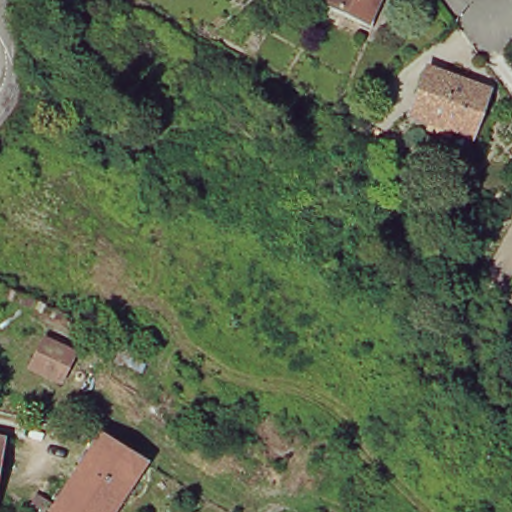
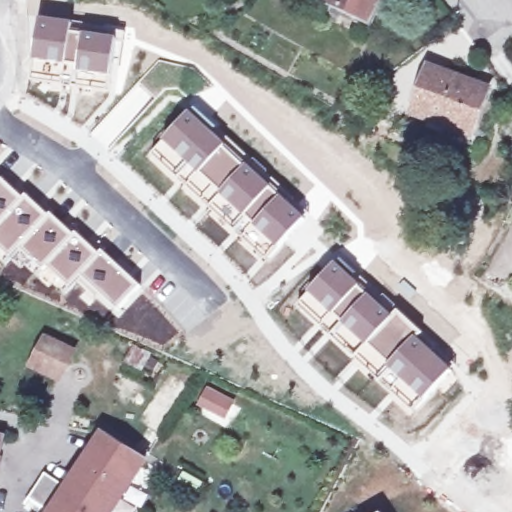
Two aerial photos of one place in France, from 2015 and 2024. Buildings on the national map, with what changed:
unchanged [(339,0),(376,0),(369,15),(339,0)]
new [(39,17),(85,22),(84,30),(116,34),(110,78),(75,73),(76,68),(33,63),(39,17)]
unchanged [(487,95),(473,132),(417,109),(434,67),(459,76),(456,83),(487,95)]
new [(192,105),(230,140),(197,176),(196,175),(186,183),(153,150),(192,105)]
new [(230,140),(251,156),(218,195),(197,176),(230,140)]
new [(251,156),(269,173),(266,177),(281,194),(251,225),(218,195),(251,156)]
new [(3,177),(51,212),(11,258),(0,251),(0,179),(3,177)]
new [(281,194),(305,216),(275,247),(251,225),(281,194)]
new [(51,212),(100,251),(70,288),(28,258),(20,266),(11,258),(51,212)]
new [(100,251),(103,249),(143,287),(116,316),(95,299),(89,305),(70,288),(100,251)]
new [(306,291),(338,257),(377,297),(381,293),(399,308),(355,354),(331,335),(296,304),(306,291)]
new [(399,308),(424,332),(419,337),(417,335),(376,375),(355,354),(399,308)]
new [(417,335),(419,337),(451,368),(412,409),(376,375),(417,335)]
unchanged [(35,366),(52,336),(81,352),(65,382),(35,366)]
unchanged [(125,356),(131,343),(148,351),(143,363),(125,356)]
unchanged [(4,436),(0,463),(0,435),(4,436)]
unchanged [(128,450),(133,445),(141,450),(139,456),(148,460),(119,512),(62,512),(106,437),(128,450)]
unchanged [(3,491),(3,507),(0,506),(0,490),(3,491)]
unchanged [(55,508),(54,512),(37,512),(44,500),(55,508)]

